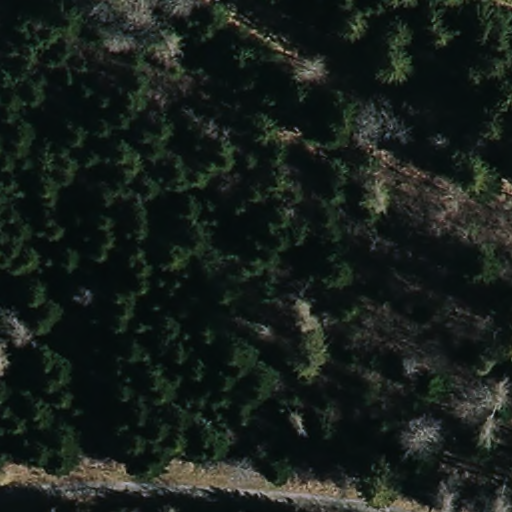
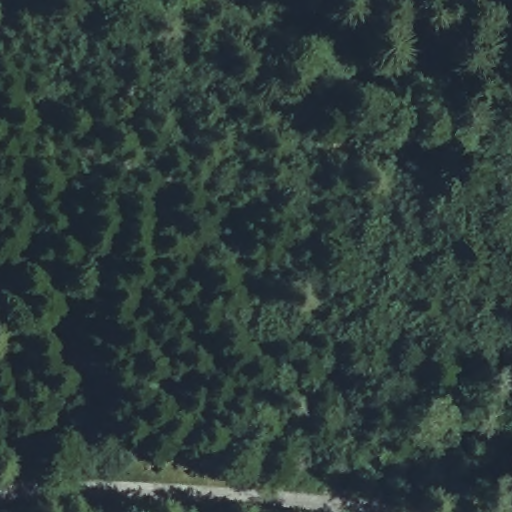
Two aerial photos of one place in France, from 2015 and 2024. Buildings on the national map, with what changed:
[]

